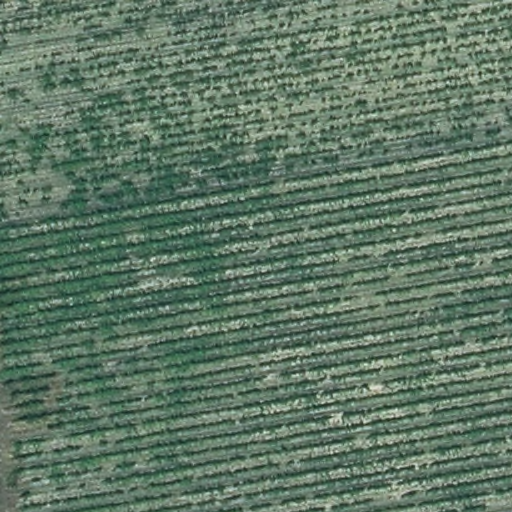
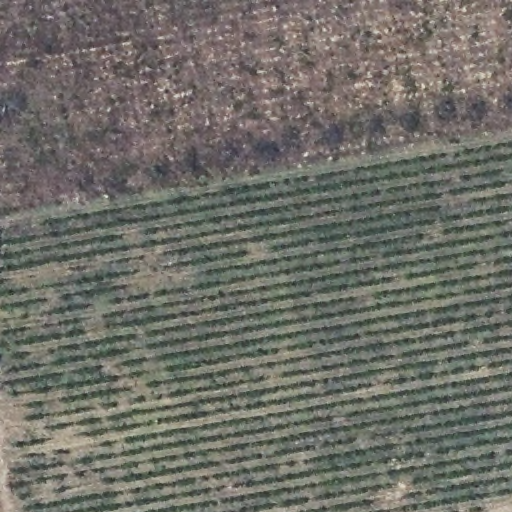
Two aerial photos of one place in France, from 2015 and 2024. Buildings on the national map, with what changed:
[]

